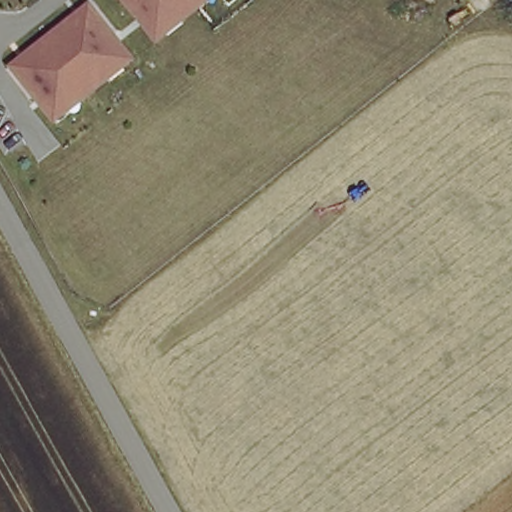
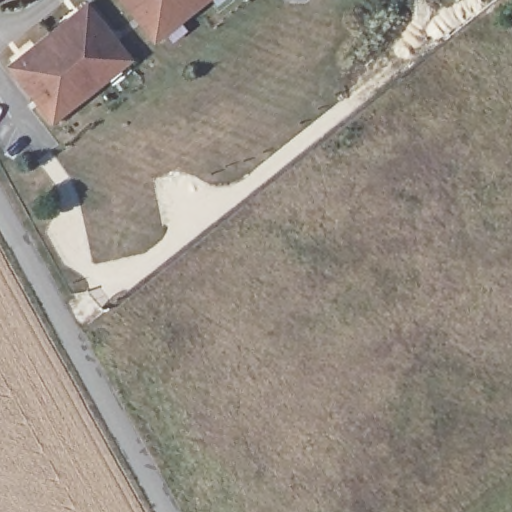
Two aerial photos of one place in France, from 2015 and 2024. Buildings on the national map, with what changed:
unchanged [(86,0),(132,59),(52,124),(5,64),(86,0)]
unchanged [(119,0),(207,0),(153,43),(119,0)]

